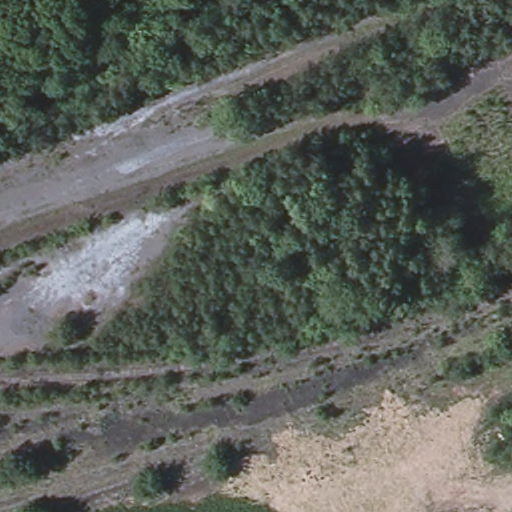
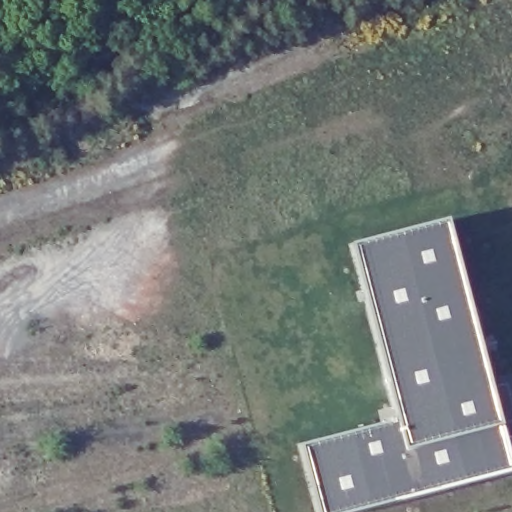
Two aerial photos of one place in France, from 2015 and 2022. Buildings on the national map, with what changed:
new [(303,446),(399,421),(354,246),(448,222),(491,389),(506,385),(512,405),(512,421),(499,424),(511,469),(345,512),(320,512),(303,446)]

